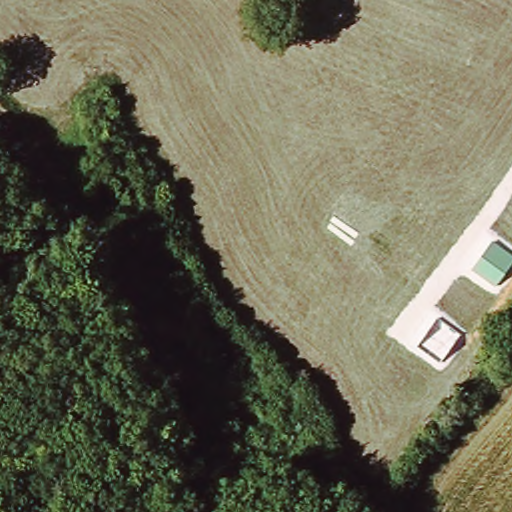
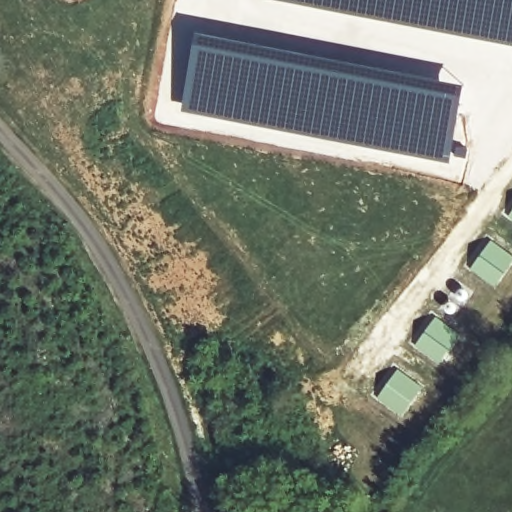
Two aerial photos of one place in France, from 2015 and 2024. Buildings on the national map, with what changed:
new [(512,47),(455,36),(449,34),(407,25),(272,0),(272,3),(259,1),(259,0),(512,0),(512,47)]
new [(272,3),(272,0),(407,25),(449,34),(443,52),(440,51),(435,64),(416,61),(359,48),(290,37),(266,29),(272,3)]
new [(195,28),(264,40),(277,43),(302,48),(407,69),(466,83),(459,133),(450,164),(270,129),(227,125),(177,112),(195,28)]
new [(290,37),(359,48),(416,61),(415,64),(410,63),(407,69),(302,48),(302,43),(290,40),(290,37)]
new [(512,212),(512,215),(511,214),(512,212)]
new [(512,265),(497,285),(472,268),(492,240),(512,253),(512,265)]
new [(462,332),(440,363),(415,346),(436,314),(462,332)]
new [(425,384),(406,414),(379,398),(399,367),(425,384)]

